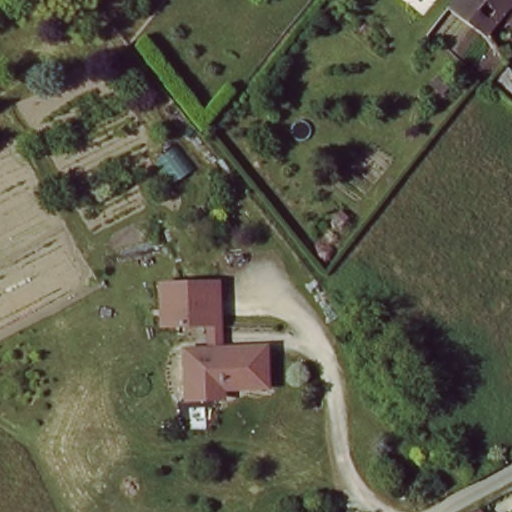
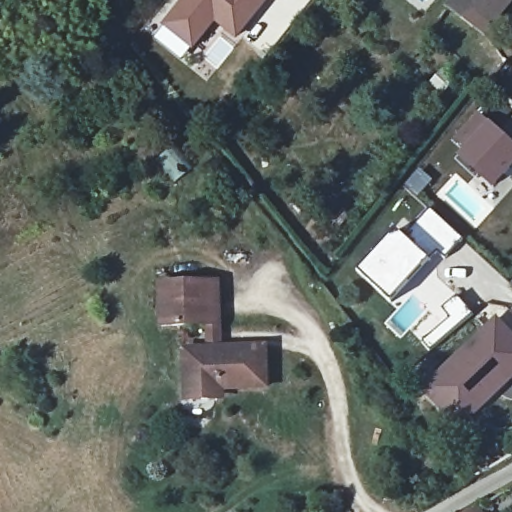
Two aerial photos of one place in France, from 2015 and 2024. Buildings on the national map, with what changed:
new [(236,39),(215,23),(192,51),(161,25),(181,0),(266,0),(236,39)]
unchanged [(455,1),(456,0),(512,0),(512,5),(491,31),(455,1)]
new [(489,125),(498,132),(510,119),(512,121),(512,161),(491,186),(460,159),(489,125)]
new [(410,227),(415,230),(439,205),(470,237),(449,259),(442,253),(400,298),(369,267),(410,227)]
unchanged [(225,318),(211,318),(156,321),(155,273),(224,271),(225,318)]
new [(502,316),(512,327),(512,382),(466,426),(430,385),(502,316)]
unchanged [(211,362),(228,362),(227,352),(280,350),(281,396),(231,398),(233,391),(211,412),(185,412),(184,352),(215,351),(211,362)]
new [(476,512),(467,512),(473,508),(476,512)]

